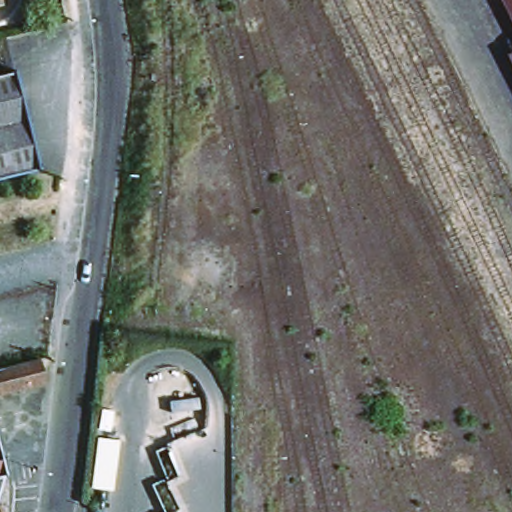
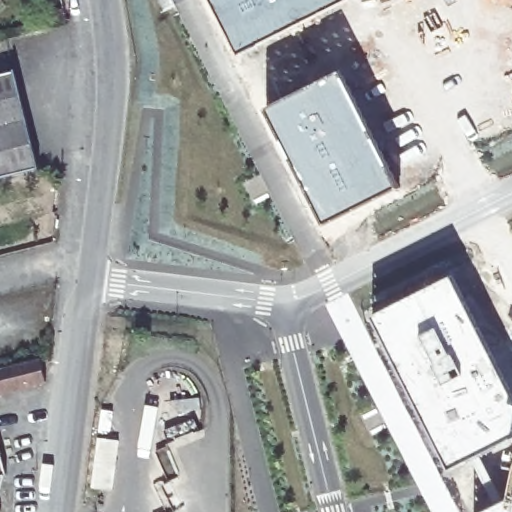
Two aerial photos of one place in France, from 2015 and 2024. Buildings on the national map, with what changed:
new [(324,14),(241,54),(212,0),(350,0),(324,14)]
demolished [(502,0),(512,0),(512,20),(502,0)]
new [(342,68),(399,185),(356,208),(326,222),(267,107),(342,68)]
unchanged [(38,172),(0,182),(0,78),(13,75),(38,172)]
new [(452,272),(512,392),(512,438),(508,440),(449,467),(372,314),(452,272)]
new [(343,330),(363,322),(461,512),(430,512),(428,508),(385,426),(370,434),(360,416),(376,408),(338,331),(342,328),(343,330)]
unchanged [(46,388),(19,395),(0,399),(0,375),(40,365),(46,388)]
new [(120,442),(113,492),(84,488),(95,410),(113,412),(110,432),(102,432),(101,440),(120,442)]
unchanged [(1,485),(0,487),(0,454),(6,480),(1,485)]
new [(475,512),(512,494),(512,512),(475,512)]

